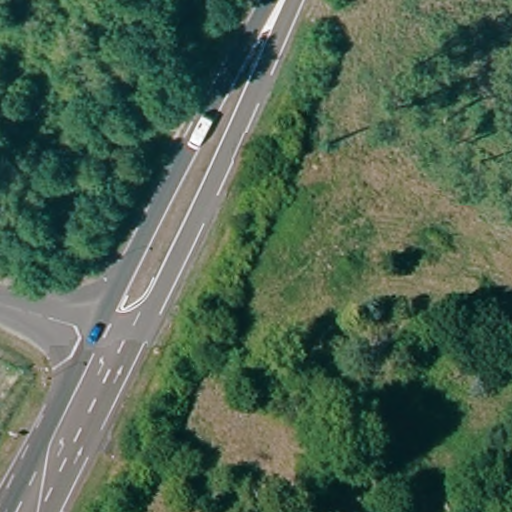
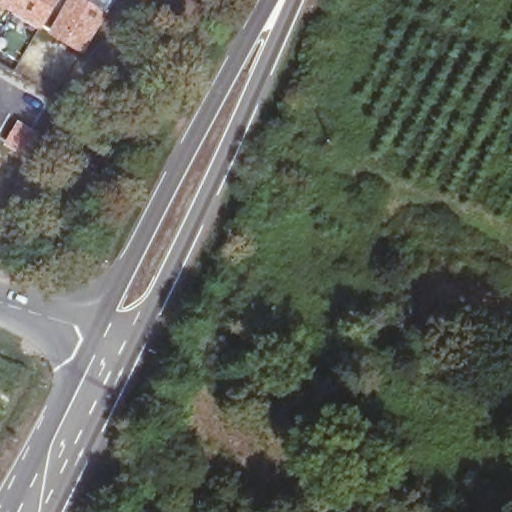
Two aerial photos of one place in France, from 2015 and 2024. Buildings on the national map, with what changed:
new [(89,0),(111,0),(80,50),(0,2),(0,0),(78,0),(86,5),(89,0)]
new [(78,0),(89,0),(86,5),(78,0)]
new [(17,119),(44,136),(29,159),(3,143),(17,119)]

